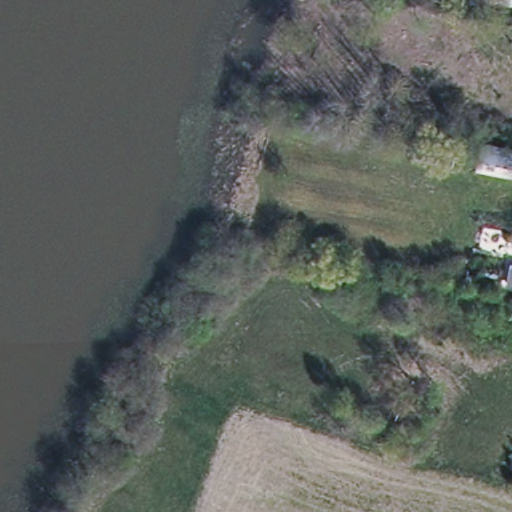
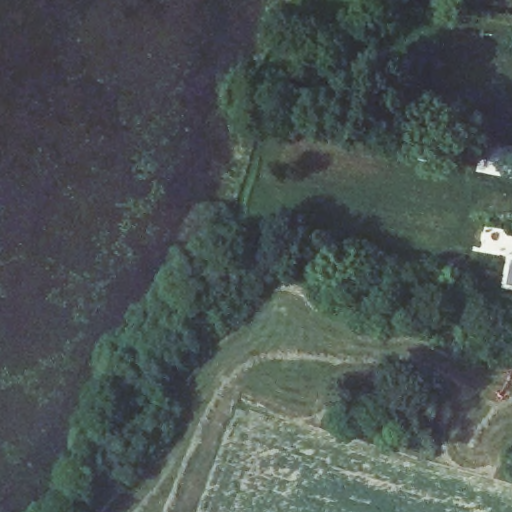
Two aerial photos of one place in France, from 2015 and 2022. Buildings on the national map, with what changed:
unchanged [(512,163),(480,156),(483,142),(512,148),(512,163)]
unchanged [(512,284),(507,283),(511,265),(512,265),(512,284)]
unchanged [(383,424),(396,396),(424,408),(413,436),(383,424)]

